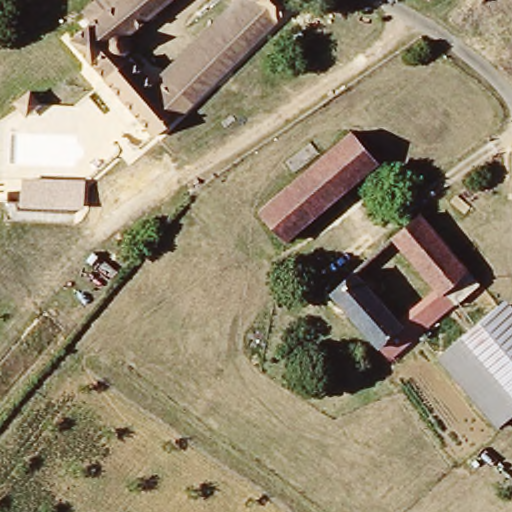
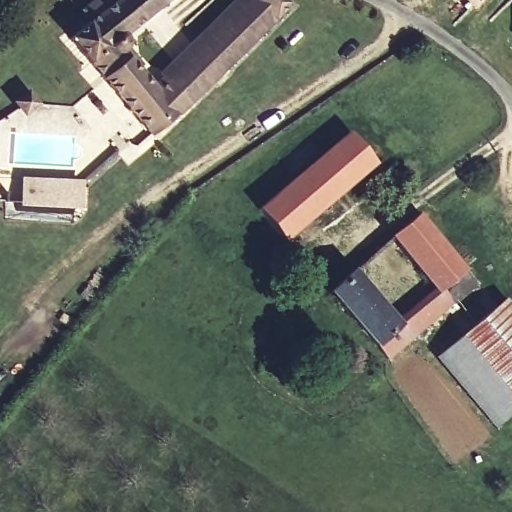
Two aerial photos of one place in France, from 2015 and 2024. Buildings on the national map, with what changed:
unchanged [(113,55),(125,70),(130,66),(157,96),(235,19),(217,0),(271,0),(281,12),(150,137),(67,47),(92,25),(123,0),(177,0),(113,55)]
unchanged [(81,12),(95,0),(123,0),(92,25),(81,12)]
unchanged [(283,237),(260,210),(350,135),(373,162),(283,237)]
unchanged [(87,181),(85,212),(20,210),(22,177),(87,181)]
unchanged [(398,322),(435,292),(393,241),(420,217),(475,285),(387,360),(332,293),(357,272),(398,322)]
unchanged [(512,297),(512,390),(463,334),(512,297)]
unchanged [(440,355),(463,334),(512,390),(512,414),(500,425),(440,355)]

